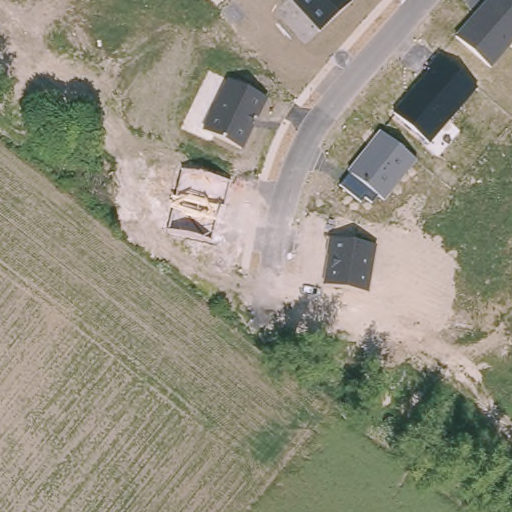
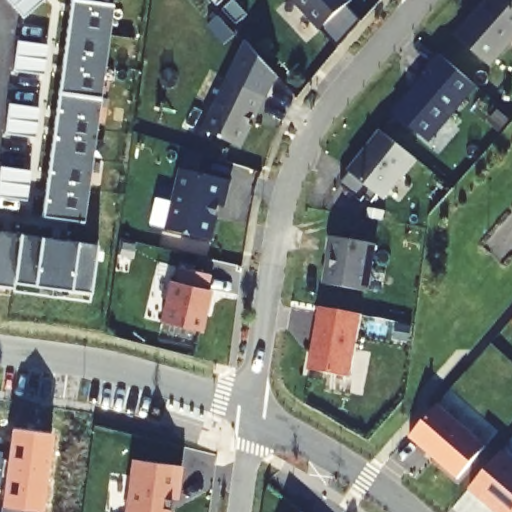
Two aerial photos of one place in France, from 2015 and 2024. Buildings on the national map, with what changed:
new [(24,16),(9,0),(43,0),(24,16)]
new [(113,4),(84,222),(42,216),(71,0),(82,0),(113,4)]
unchanged [(317,28),(290,0),(347,0),(317,28)]
unchanged [(449,33),(477,0),(512,0),(512,42),(492,67),(449,33)]
new [(276,71),(265,94),(225,76),(242,39),(276,71)]
unchanged [(389,109),(437,53),(475,83),(426,139),(389,109)]
unchanged [(201,129),(225,76),(265,94),(240,147),(201,129)]
unchanged [(376,192),(370,200),(363,196),(356,202),(333,182),(376,126),(414,156),(381,197),(376,192)]
unchanged [(232,179),(225,206),(219,205),(210,241),(167,229),(182,168),(232,179)]
new [(77,241),(98,244),(91,292),(90,301),(14,291),(14,288),(0,286),(0,230),(42,236),(77,241)]
unchanged [(374,246),(368,290),(324,281),(327,258),(326,257),(330,237),(374,246)]
new [(206,287),(211,288),(201,329),(161,320),(171,279),(176,280),(180,265),(210,272),(206,287)]
new [(350,377),(307,370),(318,307),(361,315),(350,377)]
new [(407,437),(435,402),(486,444),(457,478),(407,437)]
new [(0,476),(0,452),(2,452),(2,458),(7,459),(11,427),(54,434),(43,512),(0,512),(5,476),(0,476)]
new [(512,460),(512,512),(492,512),(467,489),(500,449),(512,460)]
new [(177,499),(171,500),(169,512),(125,512),(132,460),(181,466),(177,499)]

